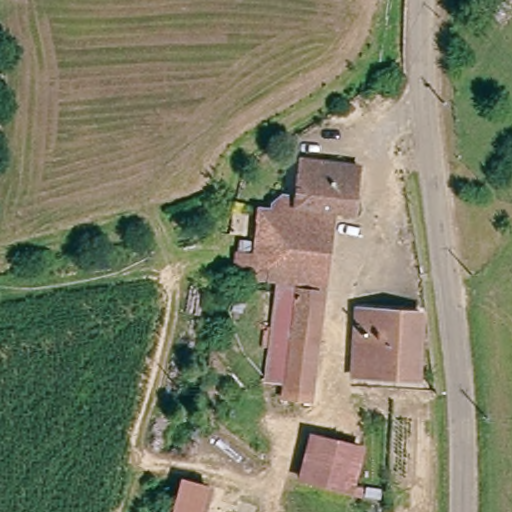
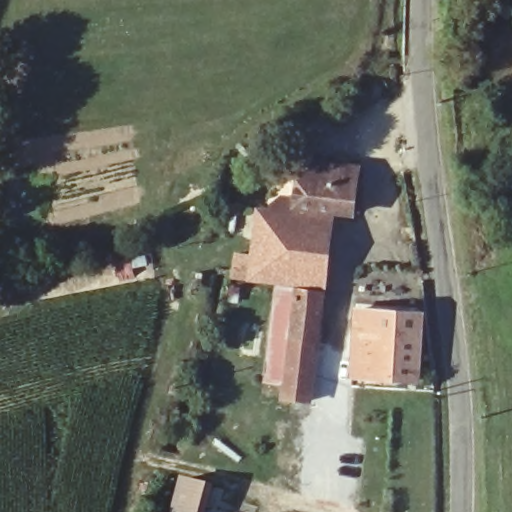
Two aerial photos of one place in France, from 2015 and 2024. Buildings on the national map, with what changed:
unchanged [(255,258),(262,211),(297,214),(303,208),(307,168),(357,171),(355,212),(333,211),(327,285),(295,282),(254,278),(234,276),(235,256),(255,258)]
unchanged [(288,401),(291,385),(268,381),(280,291),(293,293),(292,304),(303,307),(301,341),(305,342),(298,402),(288,401)]
unchanged [(305,342),(301,341),(303,307),(292,304),(293,293),(326,297),(315,403),(298,402),(305,342)]
unchanged [(421,380),(370,377),(347,376),(351,313),(423,317),(421,380)]
demolished [(355,497),(297,485),(309,435),(367,447),(355,497)]
unchanged [(212,487),(205,512),(177,512),(186,480),(212,487)]

